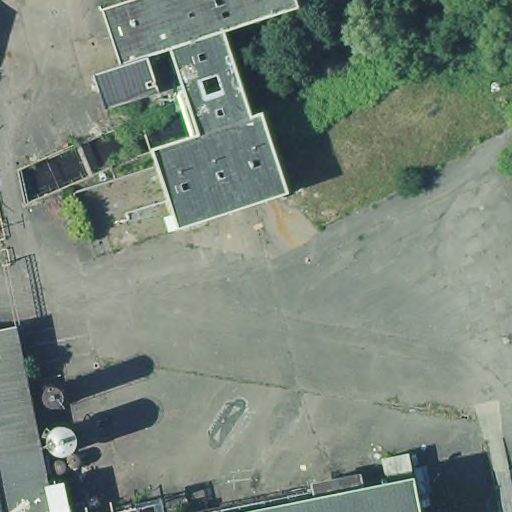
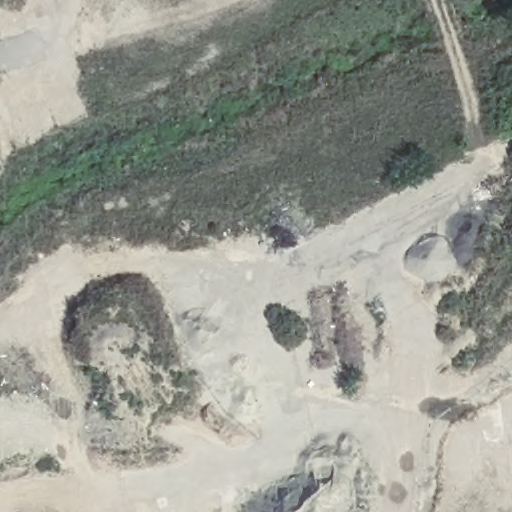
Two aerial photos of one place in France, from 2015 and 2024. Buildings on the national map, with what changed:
demolished [(112,4),(126,0),(307,0),(307,2),(232,27),(177,45),(155,52),(130,60),(112,4)]
demolished [(245,66),(192,88),(177,45),(232,27),(245,66)]
demolished [(102,69),(112,66),(117,65),(130,60),(155,52),(167,87),(128,100),(124,101),(114,104),(102,69)]
demolished [(160,145),(205,129),(192,88),(245,66),(260,110),(162,154),(160,145)]
demolished [(260,110),(260,111),(271,108),(297,188),(187,225),(162,154),(260,110)]
demolished [(0,512),(0,326),(22,322),(53,481),(63,479),(69,479),(72,498),(67,499),(57,501),(59,512),(0,512)]
demolished [(47,390),(47,386),(52,381),(57,379),(62,380),(67,384),(70,390),(69,397),(65,401),(60,404),(55,404),(50,401),(47,396),(47,390)]
demolished [(409,445),(415,471),(415,472),(423,512),(219,512),(385,478),(380,451),(409,445)]

